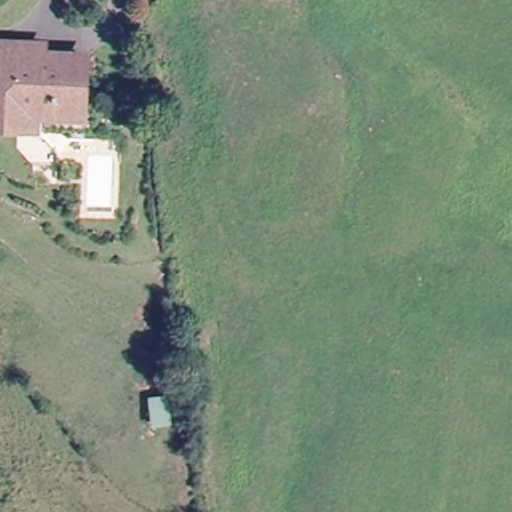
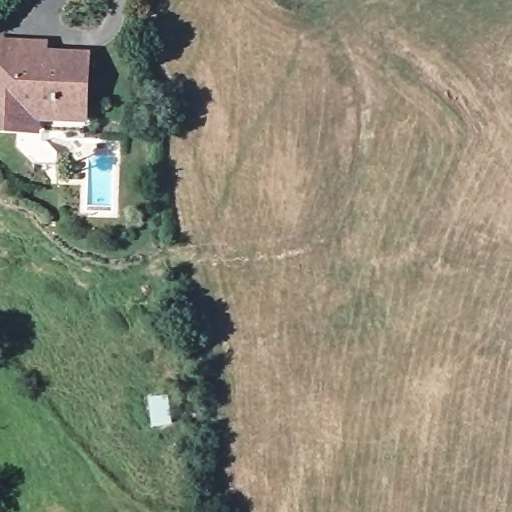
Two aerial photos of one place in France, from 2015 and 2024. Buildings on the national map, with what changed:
unchanged [(39,131),(39,145),(53,145),(55,166),(39,164),(31,159),(25,151),(21,143),(18,134),(18,131),(0,130),(0,39),(41,39),(42,59),(80,60),(78,131),(39,131)]

